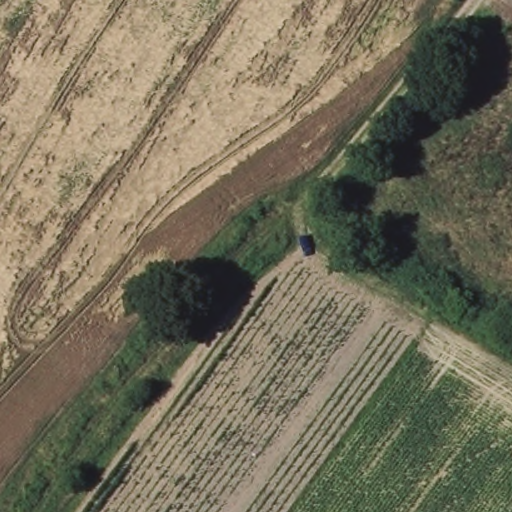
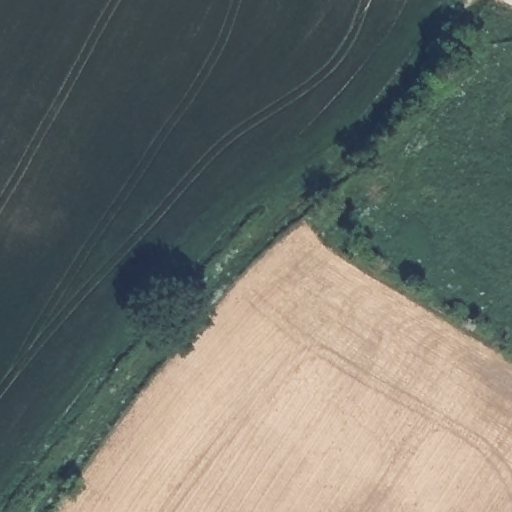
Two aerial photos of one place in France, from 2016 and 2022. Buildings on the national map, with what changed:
[]

